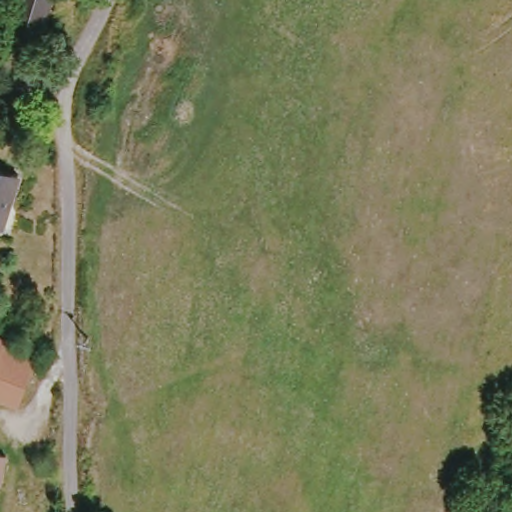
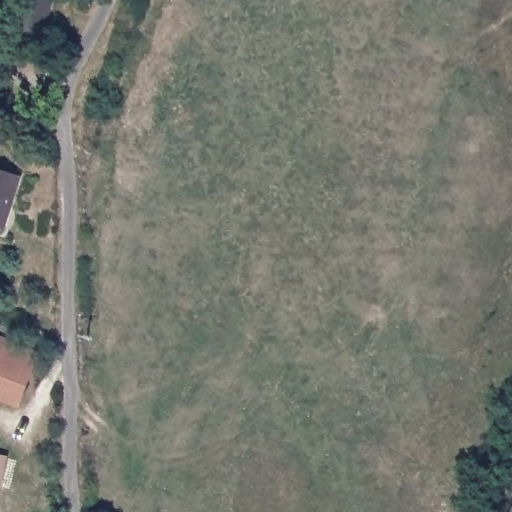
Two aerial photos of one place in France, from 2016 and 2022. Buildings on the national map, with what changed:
unchanged [(46,37),(20,30),(28,0),(55,0),(46,37)]
unchanged [(8,228),(0,225),(0,169),(20,175),(8,228)]
unchanged [(0,346),(9,350),(0,368),(0,346)]
unchanged [(11,413),(0,408),(0,368),(9,350),(36,363),(11,413)]
unchanged [(10,476),(9,486),(0,485),(0,454),(14,457),(10,476)]

